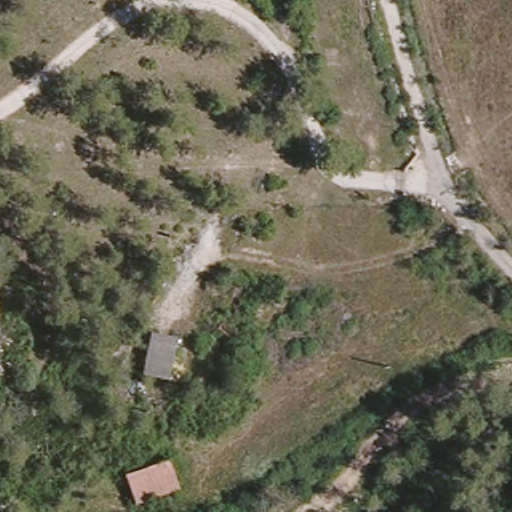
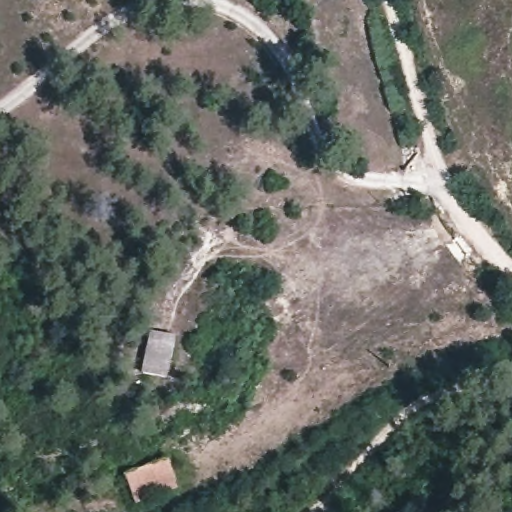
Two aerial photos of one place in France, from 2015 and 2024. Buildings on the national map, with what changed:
unchanged [(145,372),(155,332),(180,338),(171,378),(145,372)]
unchanged [(140,502),(128,476),(170,458),(180,486),(140,502)]

